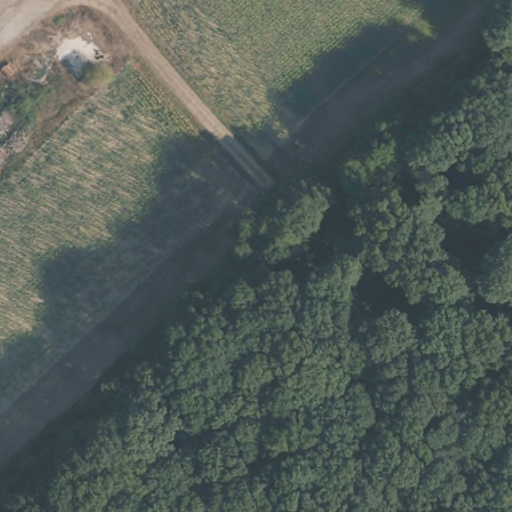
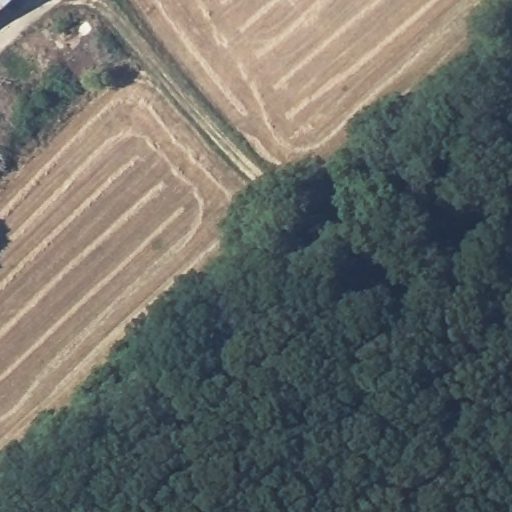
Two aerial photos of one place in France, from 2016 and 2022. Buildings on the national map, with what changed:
unchanged [(0,6),(0,0),(7,0),(0,6)]

